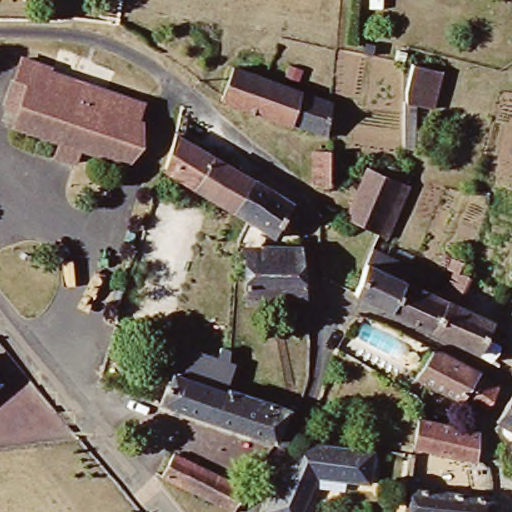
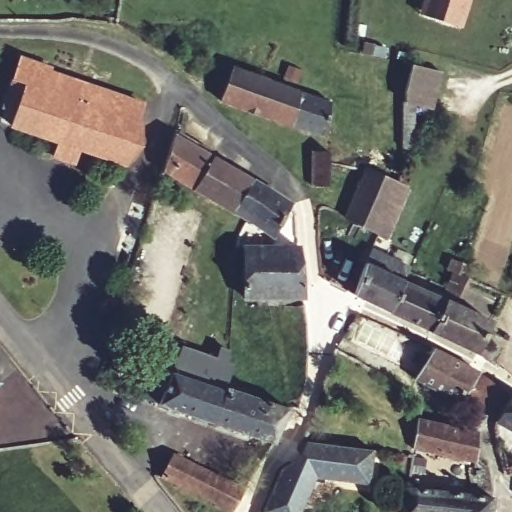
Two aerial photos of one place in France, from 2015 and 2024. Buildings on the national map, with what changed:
new [(419,14),(424,0),(470,0),(461,27),(419,14)]
unchanged [(135,147),(123,167),(76,150),(71,165),(50,159),(55,144),(8,128),(13,114),(0,109),(16,61),(45,71),(45,75),(138,107),(133,124),(136,125),(135,147)]
unchanged [(220,94),(225,63),(330,95),(325,128),(246,103),(220,94)]
unchanged [(404,96),(406,89),(411,69),(440,76),(435,97),(433,105),(404,96)]
unchanged [(162,169),(171,136),(195,150),(246,179),(231,211),(162,169)]
unchanged [(312,175),(312,142),(328,143),(328,153),(328,177),(321,177),(312,175)]
unchanged [(352,212),(373,168),(404,180),(381,232),(350,216),(352,212)]
unchanged [(285,201),(272,234),(256,225),(250,239),(233,237),(241,218),(231,211),(246,179),(285,201)]
unchanged [(295,243),(301,294),(245,295),(242,245),(295,243)]
unchanged [(386,309),(346,289),(358,260),(400,280),(386,309)]
unchanged [(400,280),(404,283),(436,299),(451,269),(456,271),(459,264),(466,267),(462,275),(449,304),(442,302),(428,330),(386,309),(400,280)]
unchanged [(486,364),(472,355),(468,350),(428,330),(442,302),(449,304),(487,324),(480,339),(495,348),(486,364)]
unchanged [(228,363),(222,384),(283,406),(271,442),(161,404),(180,347),(225,362),(228,363)]
unchanged [(482,411),(467,402),(459,397),(457,400),(415,376),(429,347),(472,373),(492,387),(482,411)]
unchanged [(510,394),(512,395),(512,433),(493,421),(510,394)]
unchanged [(475,429),(476,463),(415,450),(410,449),(414,419),(420,419),(475,429)]
unchanged [(283,461),(301,448),(307,437),(373,447),(370,482),(320,475),(300,512),(261,512),(283,461)]
unchanged [(155,473),(167,451),(229,480),(235,471),(242,476),(227,509),(155,473)]
unchanged [(495,497),(494,512),(405,512),(405,486),(409,487),(416,488),(416,494),(487,496),(495,497)]

